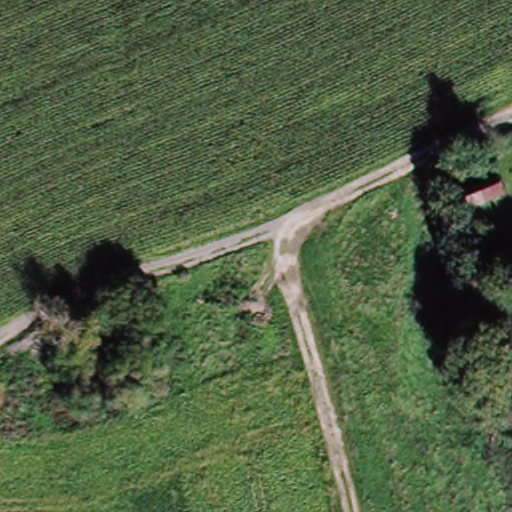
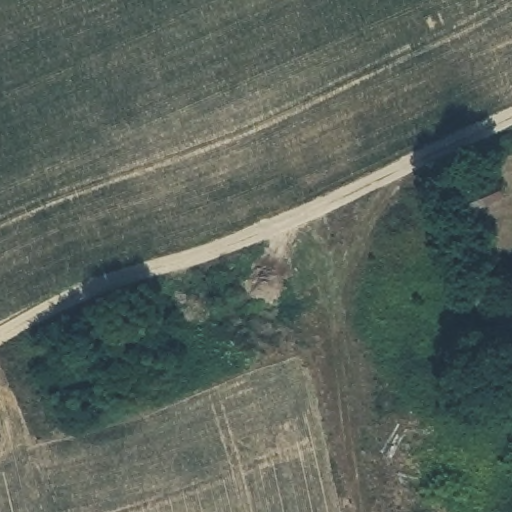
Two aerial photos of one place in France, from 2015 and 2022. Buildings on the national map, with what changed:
unchanged [(505,204),(465,219),(460,203),(500,189),(505,204)]

